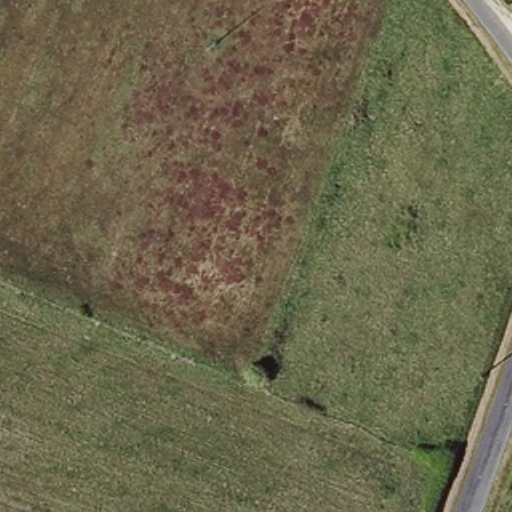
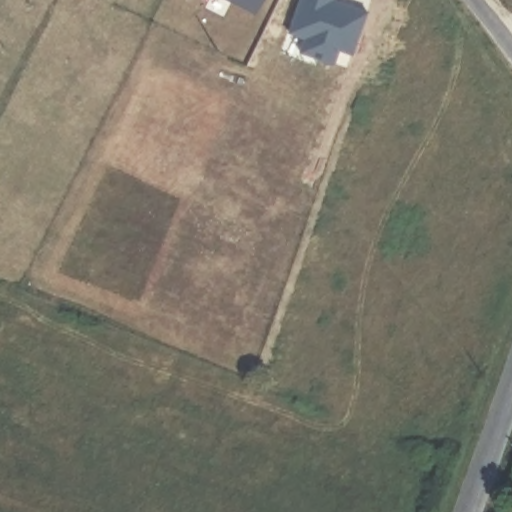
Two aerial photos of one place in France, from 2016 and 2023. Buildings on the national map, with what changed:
new [(229,0),(261,0),(255,12),(229,0)]
new [(352,54),(337,49),(333,63),(299,51),(304,37),(287,32),(297,0),(338,0),(367,9),(352,54)]

